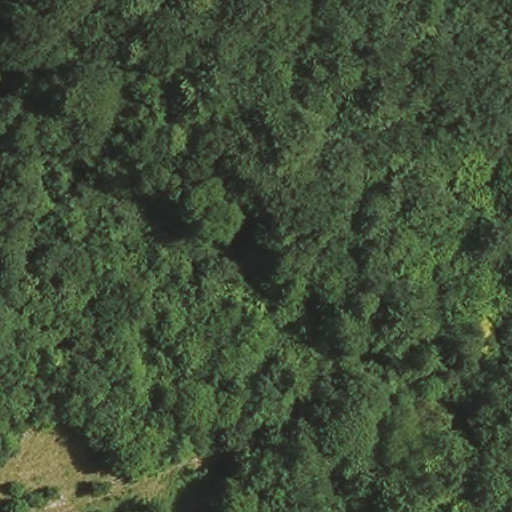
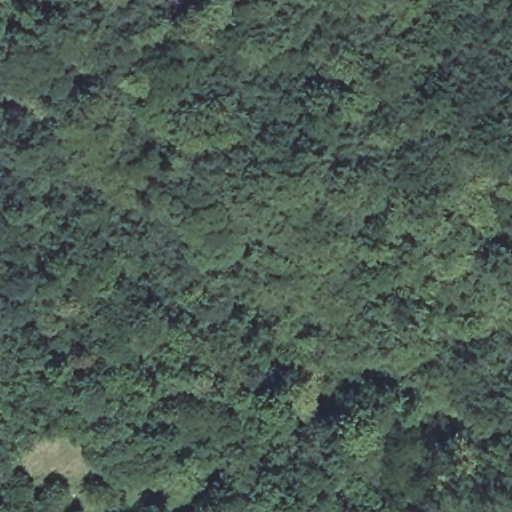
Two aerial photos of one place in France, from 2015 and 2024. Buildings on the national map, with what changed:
[]

